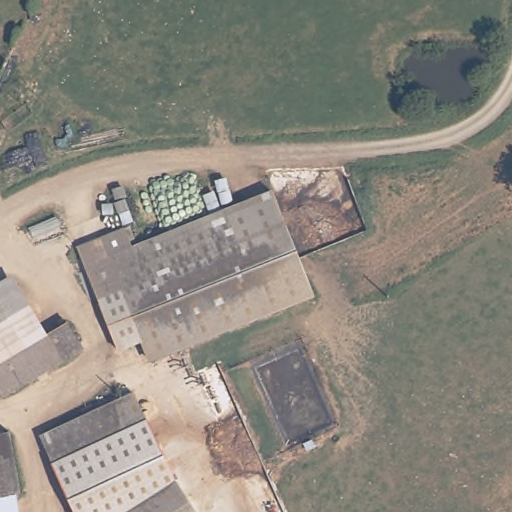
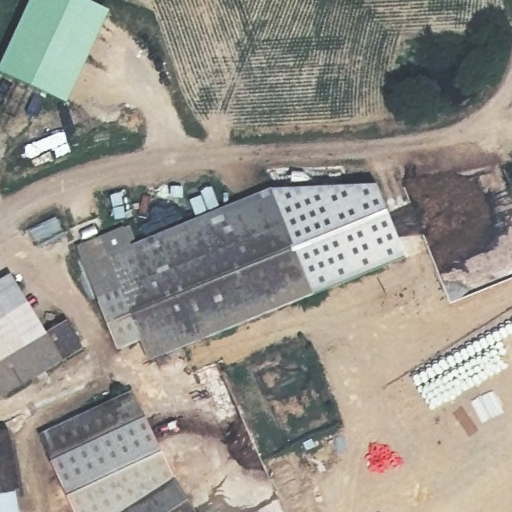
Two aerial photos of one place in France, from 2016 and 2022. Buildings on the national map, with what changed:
new [(0,71),(34,0),(82,0),(111,13),(69,105),(0,73),(0,71)]
new [(376,180),(402,247),(313,287),(265,186),(376,180)]
unchanged [(313,287),(154,365),(135,325),(120,295),(235,238),(220,208),(265,186),(313,287)]
unchanged [(117,227),(129,252),(220,208),(235,238),(120,295),(135,325),(112,336),(89,285),(74,248),(117,227)]
unchanged [(41,336),(0,361),(0,284),(10,278),(41,336)]
unchanged [(86,345),(4,393),(0,386),(0,361),(41,336),(70,319),(86,345)]
unchanged [(39,435),(134,393),(146,419),(175,482),(189,502),(195,512),(73,512),(50,462),(39,435)]
unchanged [(25,487),(20,488),(0,493),(0,429),(14,426),(25,487)]
unchanged [(24,512),(0,512),(0,493),(20,488),(24,512)]

